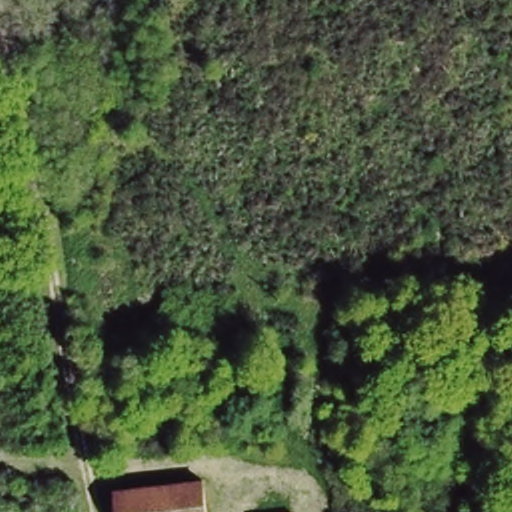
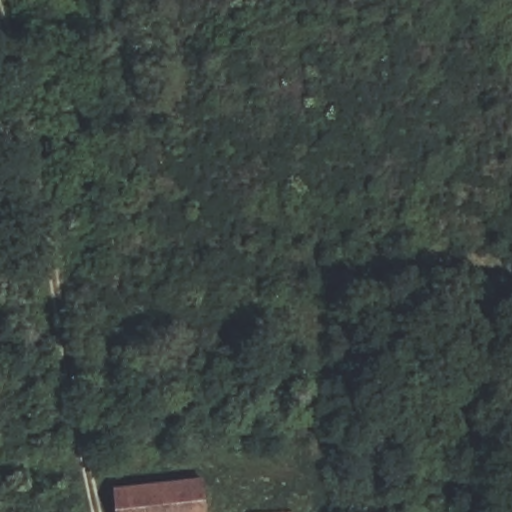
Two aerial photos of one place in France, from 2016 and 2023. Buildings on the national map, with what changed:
unchanged [(206,473),(211,512),(121,512),(117,484),(206,473)]
unchanged [(296,505),(296,512),(253,512),(253,511),(296,505)]

